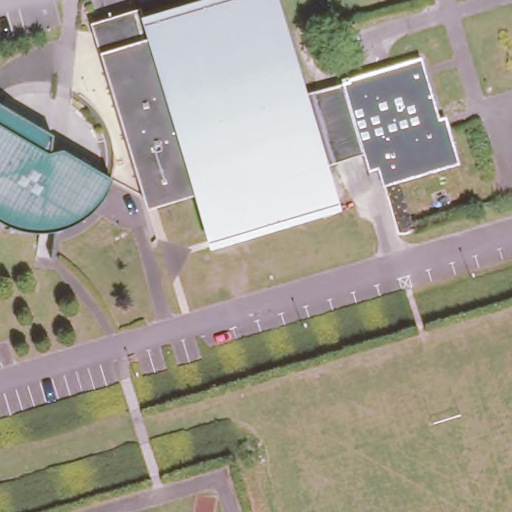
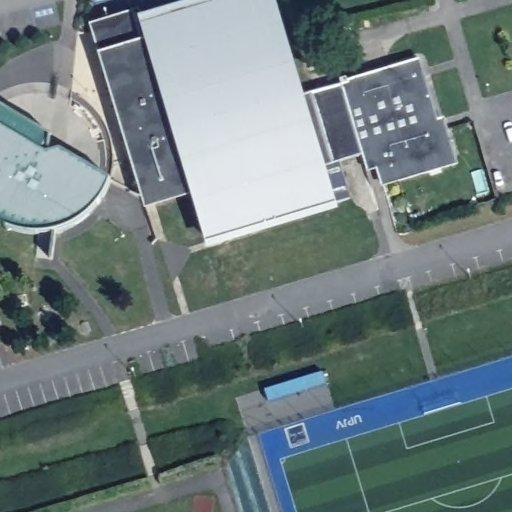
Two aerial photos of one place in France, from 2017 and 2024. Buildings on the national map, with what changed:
unchanged [(319,164),(331,201),(206,239),(190,182),(183,184),(185,193),(151,204),(141,175),(134,177),(101,68),(113,65),(103,33),(106,32),(105,26),(131,19),(133,27),(153,22),(152,19),(209,0),(273,0),(299,90),(339,78),(338,74),(344,72),(346,76),(419,55),(437,116),(443,114),(446,125),(455,158),(380,181),(376,166),(364,169),(359,152),(319,164)]
unchanged [(46,152),(59,149),(89,167),(108,179),(105,187),(99,199),(89,210),(79,219),(68,225),(54,230),(35,232),(8,227),(0,223),(0,104),(49,133),(46,152)]

